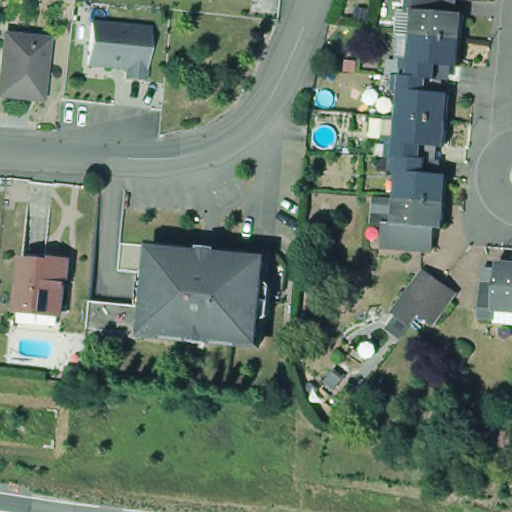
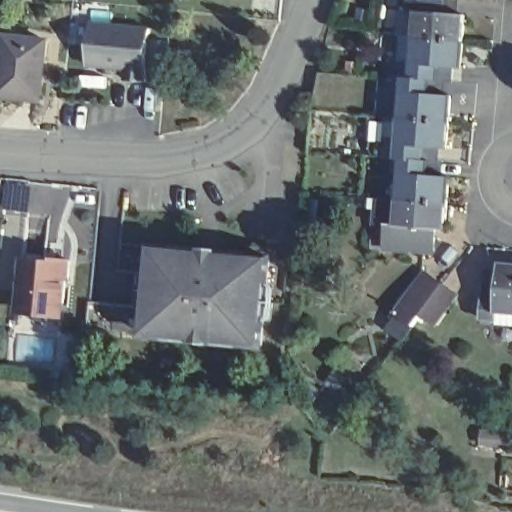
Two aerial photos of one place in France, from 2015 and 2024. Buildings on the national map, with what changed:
unchanged [(408,69),(409,42),(399,41),(393,40),(394,13),(403,14),(403,1),(439,4),(439,17),(461,20),(458,46),(456,72),(435,70),(434,85),(427,85),(414,84),(398,82),(399,67),(408,69)]
unchanged [(123,73),(124,62),(83,58),(88,16),(146,22),(141,75),(123,73)]
unchanged [(0,90),(0,31),(40,35),(33,94),(0,90)]
unchanged [(419,124),(395,122),(397,96),(388,96),(389,82),(398,82),(414,84),(427,85),(426,97),(446,99),(444,126),(419,124)]
unchanged [(405,164),(389,163),(384,162),(384,149),(381,149),(383,123),(395,124),(395,122),(419,124),(444,126),(441,152),(421,150),(420,166),(405,164)]
unchanged [(414,205),(393,204),(395,177),(387,177),(389,163),(405,164),(420,166),(424,166),(423,179),(444,180),(442,207),(414,205)]
unchanged [(439,234),(419,232),(418,247),(383,244),(384,230),(391,230),(393,204),(414,205),(442,207),(439,234)]
unchanged [(199,243),(215,246),(214,250),(266,255),(256,342),(207,337),(206,341),(190,338),(191,335),(139,329),(143,302),(146,269),(113,267),(117,240),(148,243),(198,247),(199,243)]
unchanged [(9,319),(11,299),(16,249),(47,251),(48,248),(64,250),(63,269),(59,269),(56,302),(55,323),(9,319)]
unchanged [(494,313),(482,312),(485,277),(498,279),(500,257),(512,258),(512,319),(494,317),(494,313)]
unchanged [(432,322),(417,311),(409,321),(393,309),(423,268),(439,281),(454,292),(432,322)]
unchanged [(84,297),(143,302),(139,329),(81,323),(84,297)]
unchanged [(297,343),(296,356),(290,355),(291,343),(297,343)]
unchanged [(381,356),(388,361),(378,372),(371,368),(381,356)]

